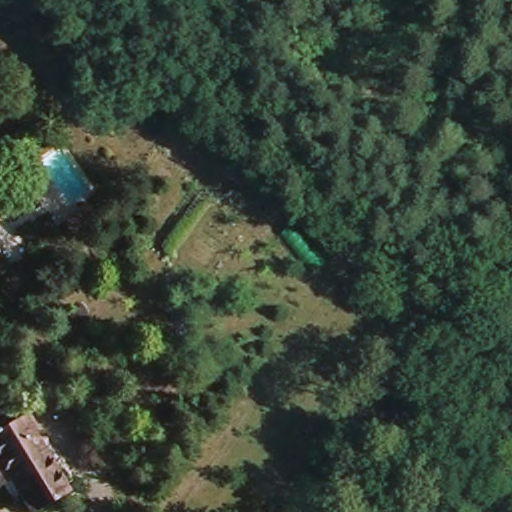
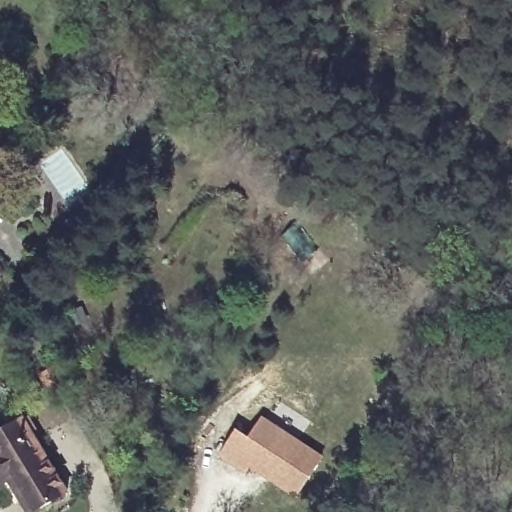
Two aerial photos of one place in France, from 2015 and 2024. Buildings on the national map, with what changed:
unchanged [(99,221),(76,237),(74,234),(66,222),(89,206),(93,212),(99,221)]
unchanged [(0,277),(0,270),(3,275),(0,277)]
unchanged [(61,370),(73,388),(56,400),(45,379),(61,370)]
new [(238,430),(250,438),(264,417),(325,458),(300,496),(253,464),(249,471),(222,453),(238,430)]
unchanged [(66,499),(41,512),(26,512),(12,488),(0,495),(0,436),(21,424),(66,499)]

